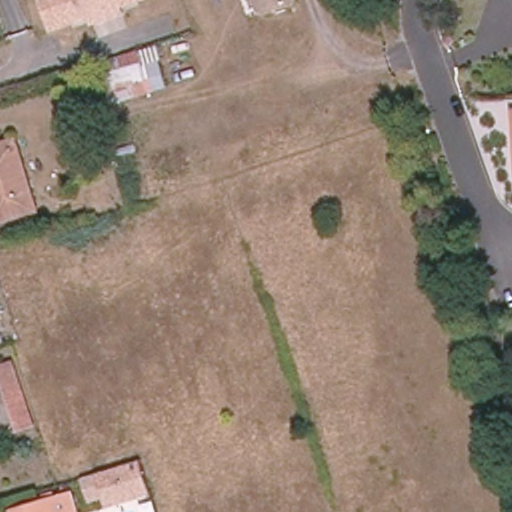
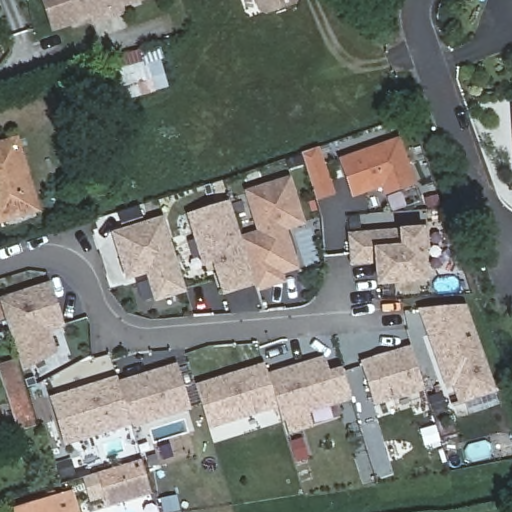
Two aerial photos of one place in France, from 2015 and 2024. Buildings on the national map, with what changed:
unchanged [(123,5),(124,14),(91,22),(87,16),(48,29),(37,0),(144,0),(123,5)]
new [(294,7),(267,15),(258,10),(254,0),(297,0),(294,7)]
unchanged [(151,78),(155,91),(111,104),(104,73),(115,70),(111,58),(139,50),(143,62),(148,78),(151,78)]
new [(385,197),(382,187),(351,198),(339,158),(400,137),(417,185),(385,197)]
unchanged [(0,220),(0,144),(16,139),(37,209),(0,220)]
new [(318,150),(332,196),(316,202),(301,156),(318,150)]
new [(241,235),(258,231),(245,189),(291,175),(306,226),(289,231),(300,269),(284,274),(287,283),(258,291),(256,285),(241,235)]
new [(222,295),(213,264),(203,267),(188,214),(231,200),(241,235),(256,285),(222,295)]
new [(156,302),(146,275),(126,280),(111,232),(164,216),(187,293),(156,302)]
new [(376,285),(374,264),(353,266),(350,232),(400,229),(425,227),(429,283),(376,285)]
new [(51,332),(56,352),(23,371),(0,300),(0,297),(51,282),(65,327),(51,332)]
new [(443,381),(427,338),(419,313),(430,312),(464,309),(493,393),(459,405),(452,387),(446,389),(443,381)]
new [(409,351),(422,390),(372,405),(359,366),(409,351)]
unchanged [(18,431),(0,375),(0,365),(14,360),(36,425),(18,431)]
new [(327,375),(340,371),(348,398),(335,402),(279,420),(275,407),(266,378),(323,360),(327,375)]
new [(119,385),(175,367),(188,409),(131,426),(130,424),(119,385)]
new [(263,367),(266,378),(275,407),(206,428),(194,389),(263,367)]
new [(65,447),(49,396),(117,376),(119,385),(131,426),(65,447)]
unchanged [(81,475),(100,473),(139,461),(151,493),(108,505),(106,498),(85,504),(81,475)]
unchanged [(71,494),(77,512),(15,512),(15,511),(71,494)]
unchanged [(78,512),(81,511),(81,512),(78,512)]

